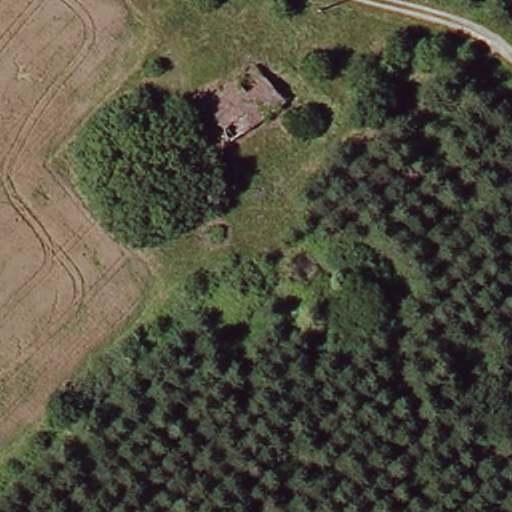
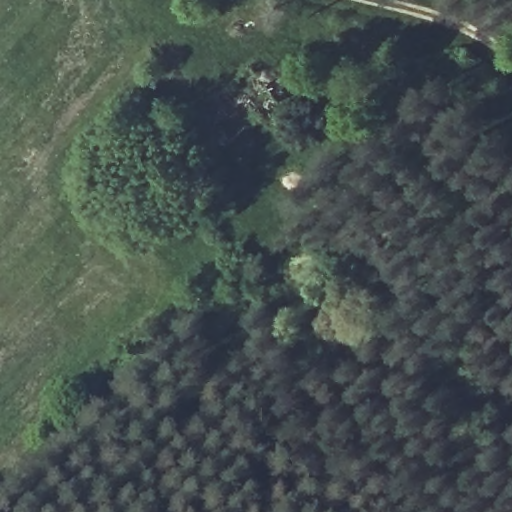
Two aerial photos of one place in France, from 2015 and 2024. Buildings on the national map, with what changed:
unchanged [(249,70),(253,71),(278,105),(228,145),(205,115),(200,108),(202,106),(249,70)]

